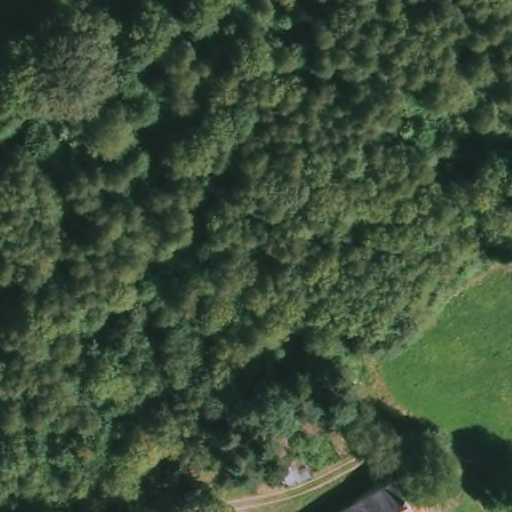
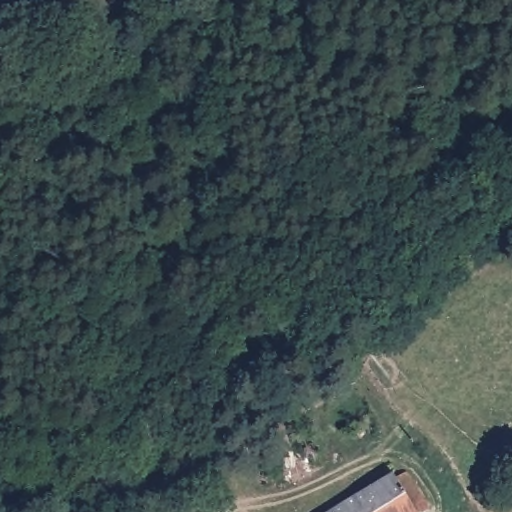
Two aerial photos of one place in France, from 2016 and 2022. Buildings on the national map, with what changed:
unchanged [(286,484),(262,439),(289,428),(320,472),(286,484)]
unchanged [(425,512),(337,512),(389,479),(394,484),(405,477),(428,510),(425,512)]

